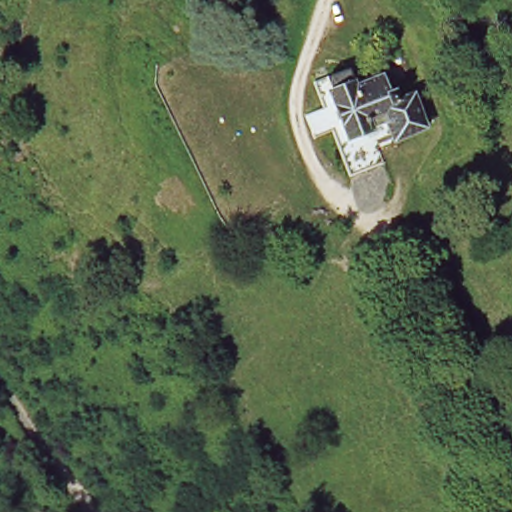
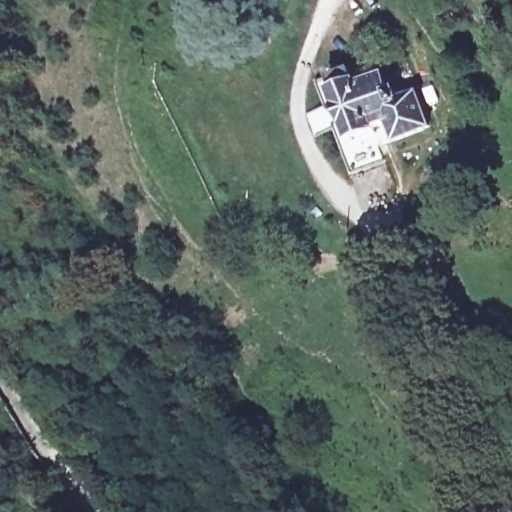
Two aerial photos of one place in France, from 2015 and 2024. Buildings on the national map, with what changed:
unchanged [(362,169),(327,78),(357,66),(365,86),(392,75),(397,87),(407,83),(411,94),(427,88),(439,120),(403,133),(392,107),(379,112),(388,137),(374,142),(381,162),(362,169)]

